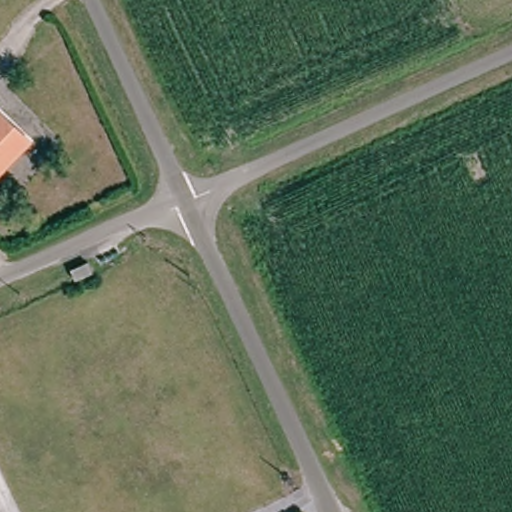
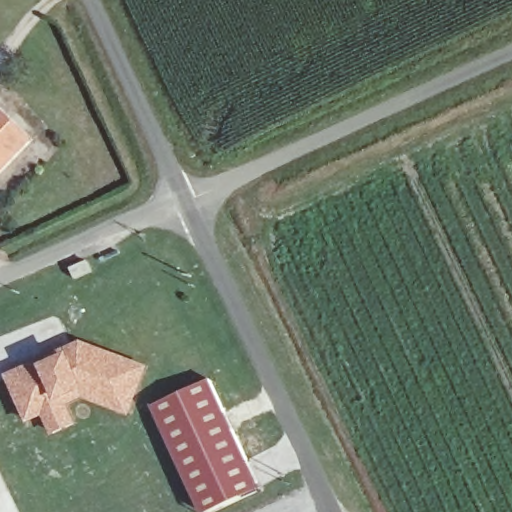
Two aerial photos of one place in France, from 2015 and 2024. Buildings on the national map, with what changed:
unchanged [(0,115),(0,114),(33,140),(0,179),(0,115)]
new [(84,400),(69,406),(79,426),(54,437),(44,417),(28,424),(5,376),(81,341),(149,366),(130,417),(84,400)]
new [(209,379),(262,489),(212,512),(203,512),(153,407),(209,379)]

